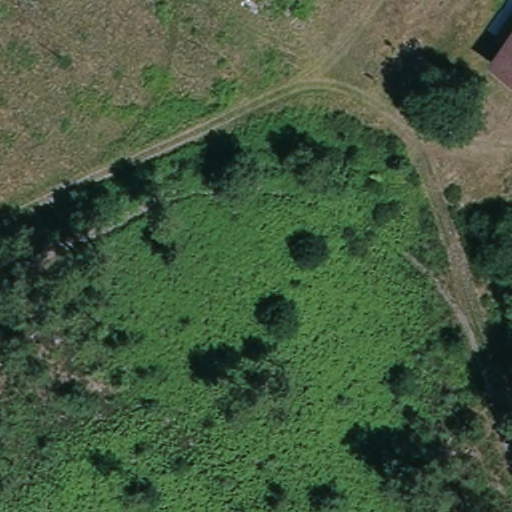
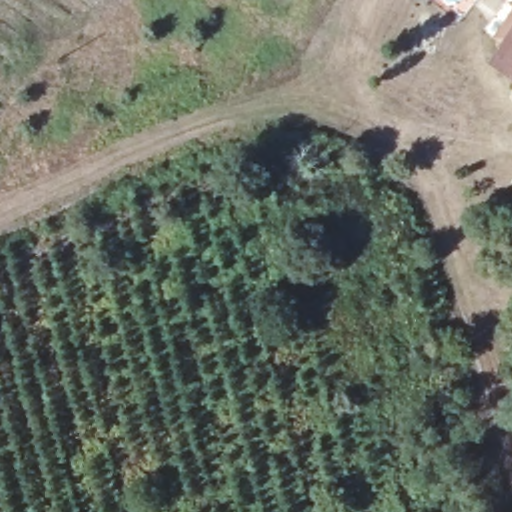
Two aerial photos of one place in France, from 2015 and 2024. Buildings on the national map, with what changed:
unchanged [(497,37),(492,35),(512,2),(512,80),(482,61),(497,37)]
unchanged [(512,80),(512,89),(507,87),(512,80)]

